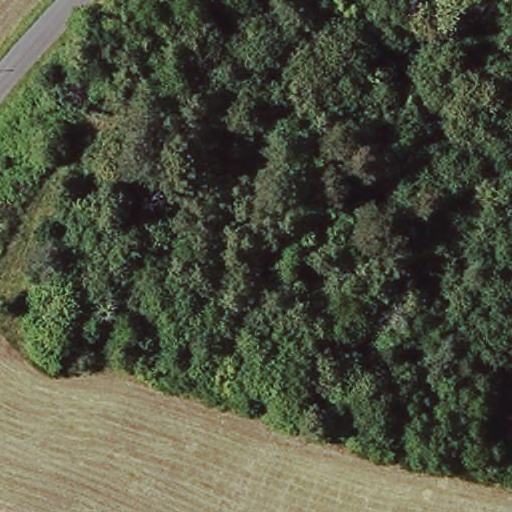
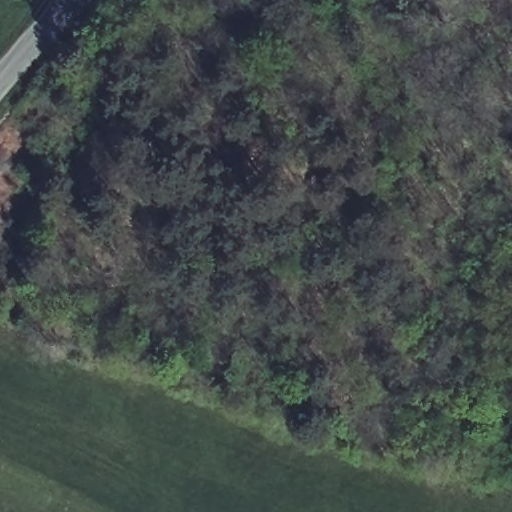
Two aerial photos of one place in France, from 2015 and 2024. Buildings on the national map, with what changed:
unchanged [(347,208),(338,232),(323,226),(331,202),(347,208)]

